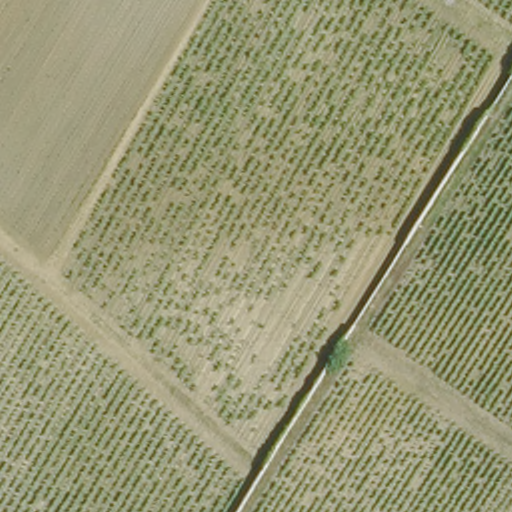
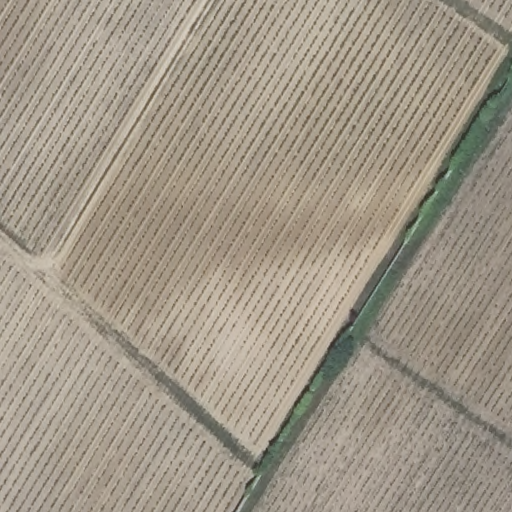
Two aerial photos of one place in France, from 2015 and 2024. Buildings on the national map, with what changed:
[]

